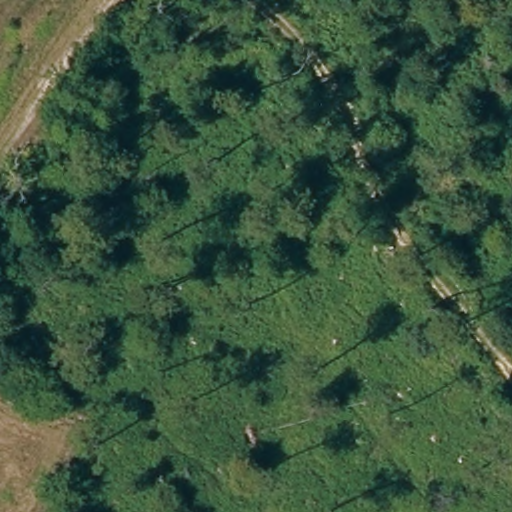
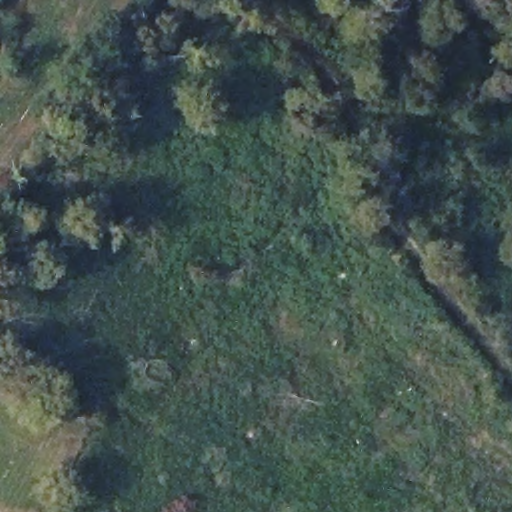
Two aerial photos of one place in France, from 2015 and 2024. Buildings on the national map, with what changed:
[]

